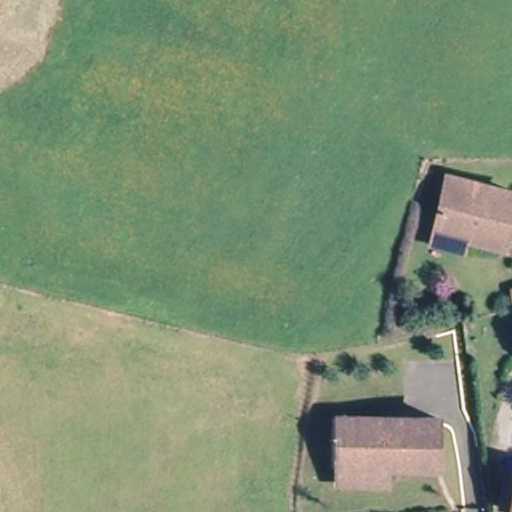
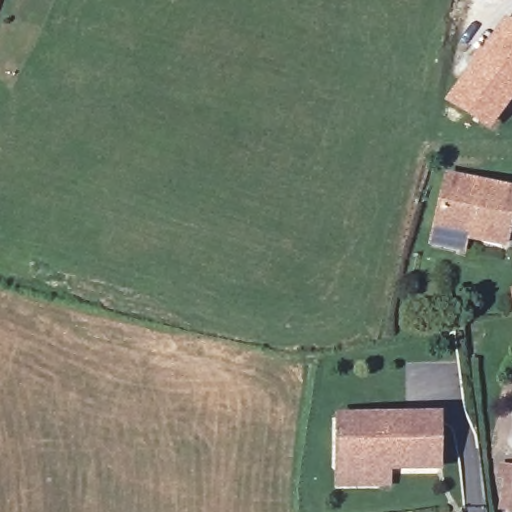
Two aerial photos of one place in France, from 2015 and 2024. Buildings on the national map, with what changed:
new [(512,105),(489,136),(444,103),(472,63),(469,61),(479,48),(483,51),(506,19),(512,23),(512,105)]
unchanged [(468,251),(464,261),(427,251),(443,173),(512,189),(512,229),(505,258),(468,251)]
unchanged [(429,469),(392,468),(344,466),(344,417),(428,418),(441,418),(440,469),(429,469)]
unchanged [(510,465),(512,466),(512,512),(504,512),(498,511),(510,465)]
unchanged [(393,489),(344,487),(344,466),(392,468),(393,489)]

